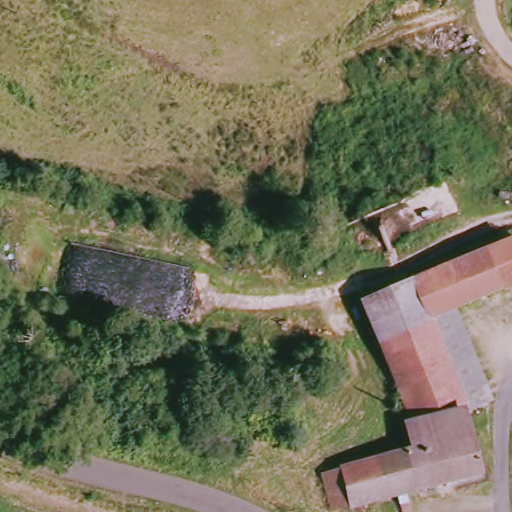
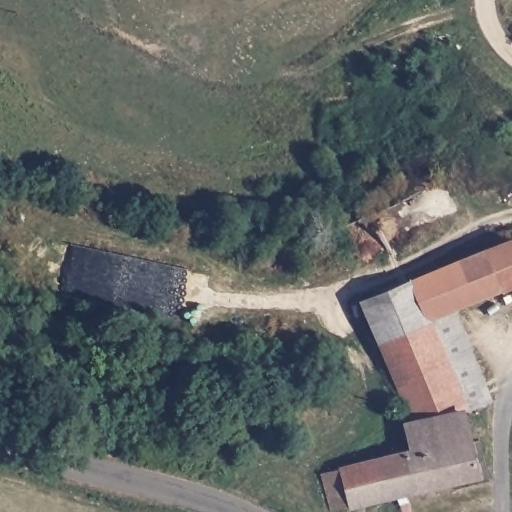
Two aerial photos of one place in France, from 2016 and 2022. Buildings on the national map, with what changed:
unchanged [(370,306),(512,244),(512,290),(463,312),(383,344),(370,306)]
unchanged [(463,312),(502,409),(491,411),(469,416),(415,428),(406,412),(383,344),(463,312)]
unchanged [(403,492),(352,506),(333,512),(323,477),(344,471),(408,453),(403,432),(415,428),(469,416),(487,467),(412,489),(421,512),(411,512),(403,492)]

